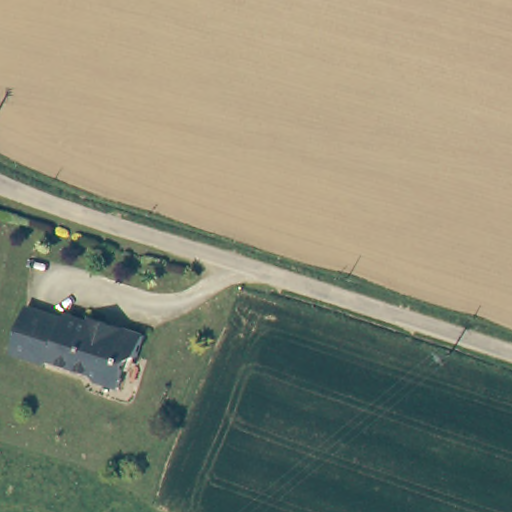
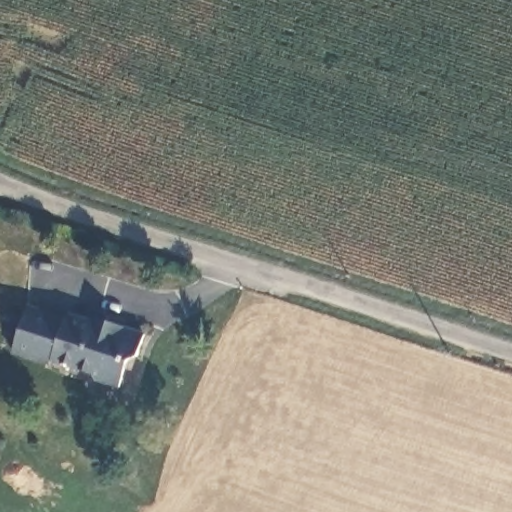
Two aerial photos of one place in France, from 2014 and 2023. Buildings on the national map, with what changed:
unchanged [(64,320),(67,315),(91,322),(94,316),(146,333),(139,358),(126,365),(118,388),(89,378),(83,370),(54,362),(45,366),(12,355),(27,307),(64,320)]

